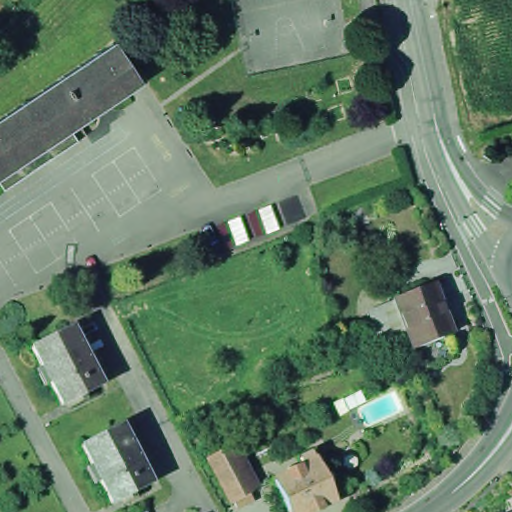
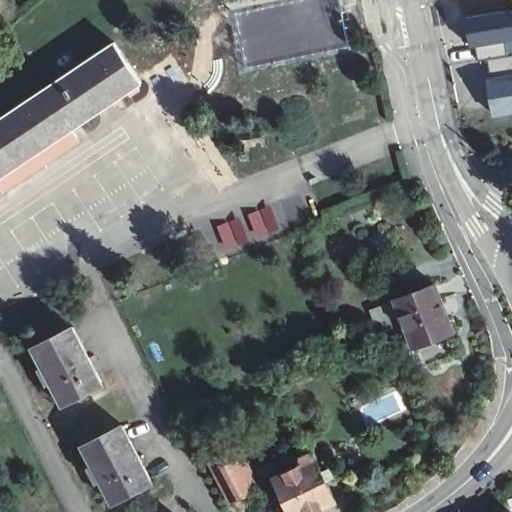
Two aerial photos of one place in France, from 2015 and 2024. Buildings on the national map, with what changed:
new [(512,53),(486,57),(477,59),(475,46),(468,47),(462,15),(512,7),(512,53)]
unchanged [(118,41),(145,79),(75,126),(84,138),(9,189),(1,177),(0,178),(0,120),(118,41)]
new [(486,57),(512,53),(512,112),(491,116),(485,76),(490,75),(486,57)]
unchanged [(411,352),(394,304),(405,300),(405,299),(445,285),(463,334),(423,348),(411,352)]
unchanged [(65,408),(36,352),(35,349),(75,328),(76,329),(106,387),(65,408)]
unchanged [(108,506),(100,488),(79,448),(120,427),(141,468),(150,484),(108,506)]
unchanged [(237,507),(233,500),(231,502),(208,457),(228,447),(251,491),(248,493),(251,500),(237,507)]
unchanged [(330,483),(324,486),(334,506),(322,512),(287,512),(273,482),(302,468),(299,462),(310,458),(313,463),(320,478),(326,474),(330,483)]

